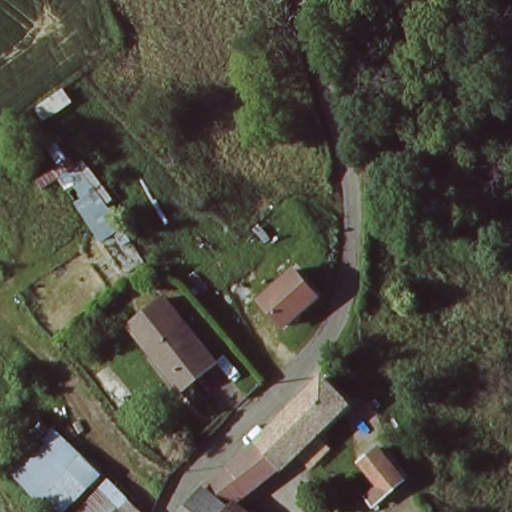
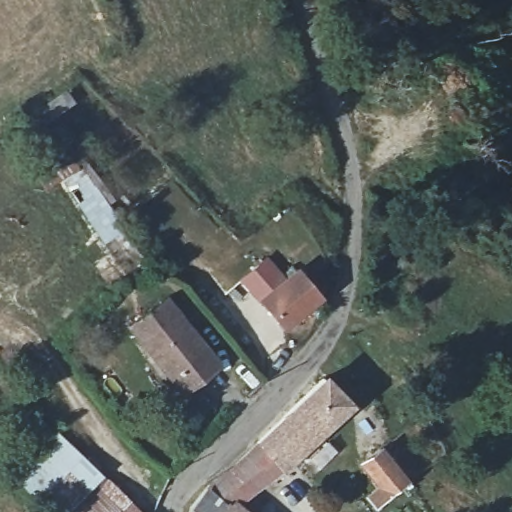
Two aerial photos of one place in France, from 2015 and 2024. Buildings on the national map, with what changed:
unchanged [(289,321),(280,328),(259,301),(273,289),(294,271),(315,297),(289,321)]
unchanged [(138,329),(173,305),(209,356),(176,380),(138,329)]
unchanged [(340,405),(327,418),(307,440),(281,465),(274,472),(256,488),(230,507),(222,512),(183,512),(184,510),(193,500),(197,495),(226,472),(241,460),(278,425),(305,397),(318,385),(340,405)]
unchanged [(65,512),(46,512),(2,468),(48,424),(102,475),(65,512)]
unchanged [(366,500),(369,497),(380,490),(385,485),(365,458),(379,446),(382,451),(400,474),(408,483),(388,499),(374,510),(366,500)]
unchanged [(110,512),(104,512),(107,509),(110,512)]

